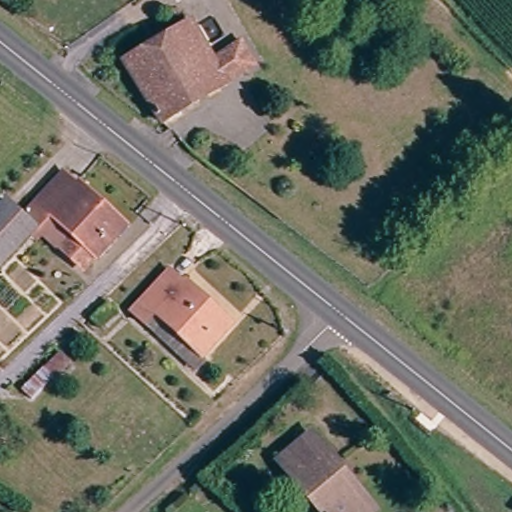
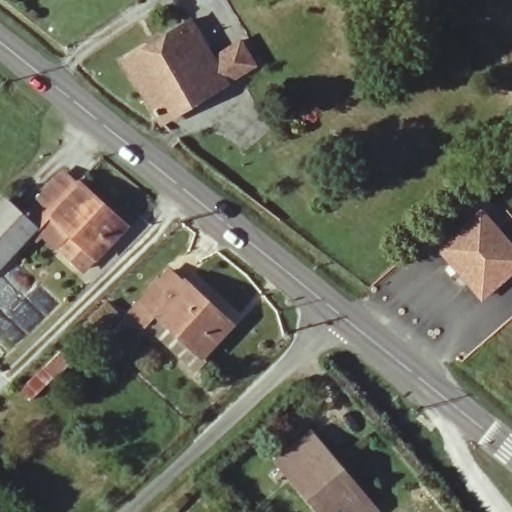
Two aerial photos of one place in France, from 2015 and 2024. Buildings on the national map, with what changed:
unchanged [(188,15),(213,54),(242,36),(258,63),(169,121),(126,55),(188,15)]
unchanged [(127,220),(86,262),(65,245),(77,230),(54,210),(45,220),(27,204),(58,170),(75,185),(80,180),(127,220)]
unchanged [(36,225),(0,264),(0,210),(9,200),(36,225)]
new [(435,248),(482,207),(512,242),(512,277),(482,301),(435,248)]
unchanged [(232,323),(205,354),(157,312),(145,326),(130,313),(164,274),(179,286),(184,281),(232,323)]
unchanged [(348,483),(370,508),(366,512),(324,512),(283,467),(316,438),(353,479),(348,483)]

